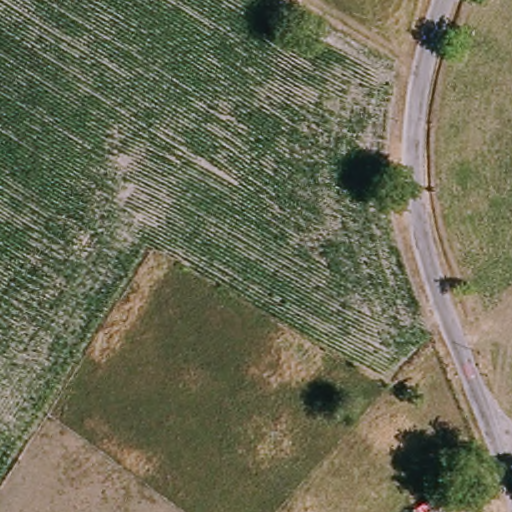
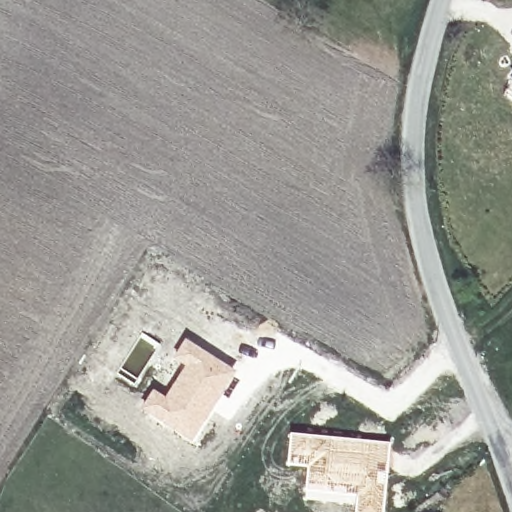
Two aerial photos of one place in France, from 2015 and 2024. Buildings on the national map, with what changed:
new [(512,70),(512,76),(510,74),(512,70)]
new [(151,388),(164,395),(184,365),(172,357),(185,337),(237,370),(191,441),(139,407),(151,388)]
new [(390,441),(383,512),(353,512),(355,496),(318,493),(318,489),(304,486),(305,468),(285,465),(288,432),(390,441)]

